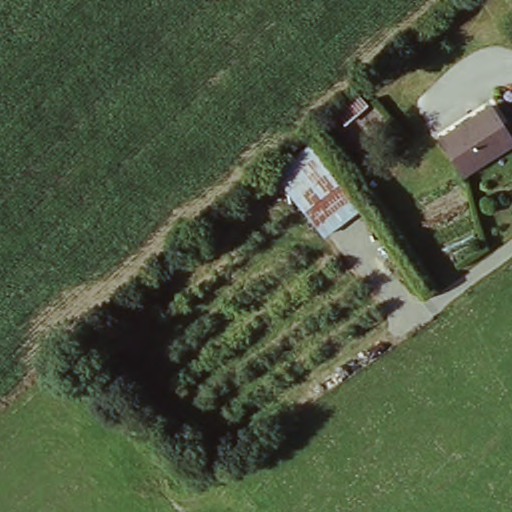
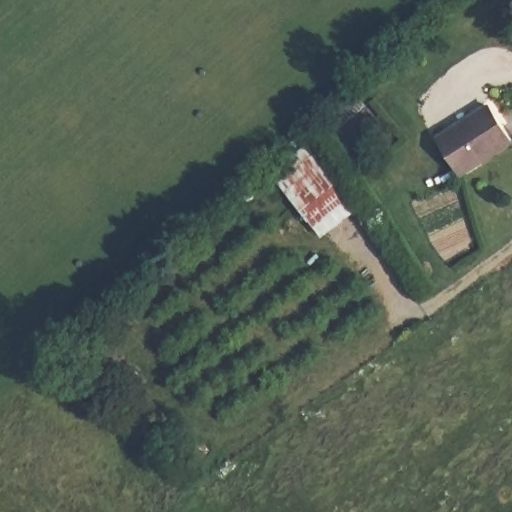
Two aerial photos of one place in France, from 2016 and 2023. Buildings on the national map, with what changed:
unchanged [(489,106),(511,143),(462,176),(438,141),(489,106)]
unchanged [(268,175),(308,144),(340,186),(300,216),(268,175)]

